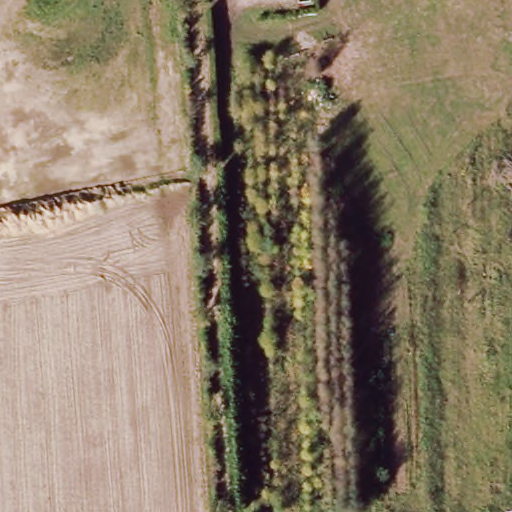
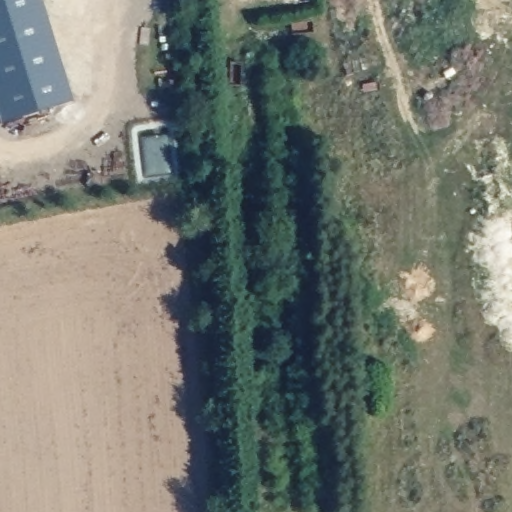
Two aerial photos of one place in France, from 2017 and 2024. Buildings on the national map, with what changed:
new [(72,102),(0,124),(0,122),(0,0),(42,0),(72,102)]

